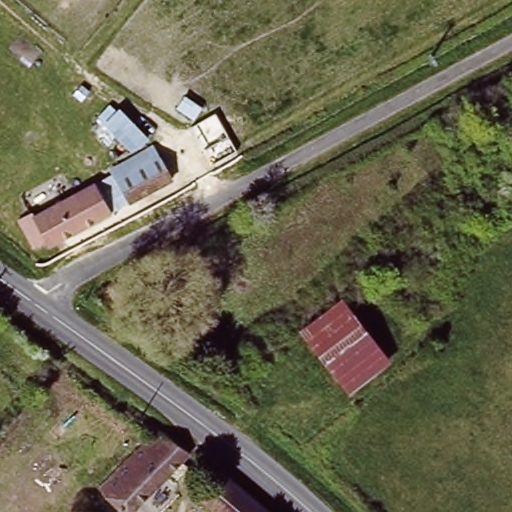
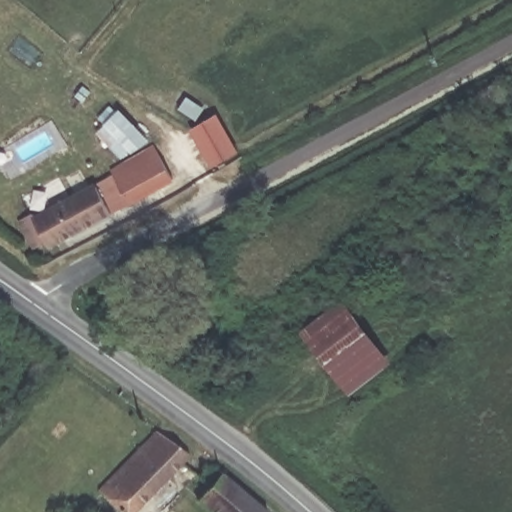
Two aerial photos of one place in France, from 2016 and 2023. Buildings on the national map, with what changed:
new [(214,115),(236,152),(211,166),(190,129),(197,125),(214,115)]
unchanged [(95,181),(146,152),(150,157),(170,143),(186,171),(165,184),(43,255),(38,249),(30,253),(12,226),(22,219),(19,214),(46,198),(53,208),(95,184),(95,181)]
unchanged [(130,285),(115,301),(98,284),(111,270),(130,285)]
unchanged [(348,298),(397,362),(351,396),(301,332),(348,298)]
unchanged [(178,448),(175,452),(186,462),(132,512),(113,512),(92,490),(155,432),(178,448)]
unchanged [(266,508),(263,512),(217,512),(202,497),(225,474),(255,497),(266,508)]

